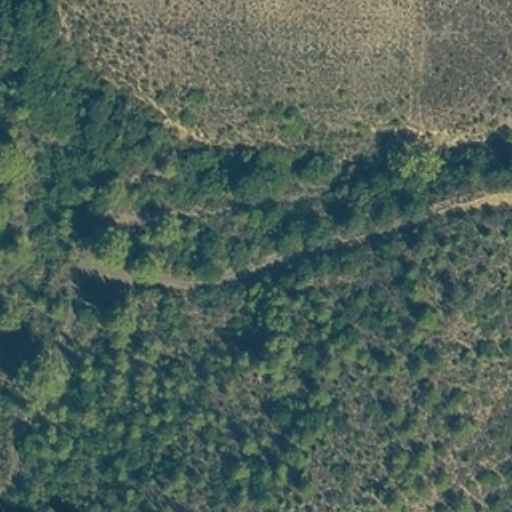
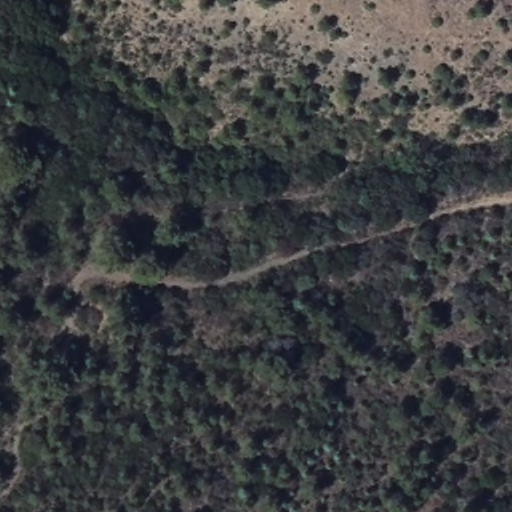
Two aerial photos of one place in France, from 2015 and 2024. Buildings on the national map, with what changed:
[]

